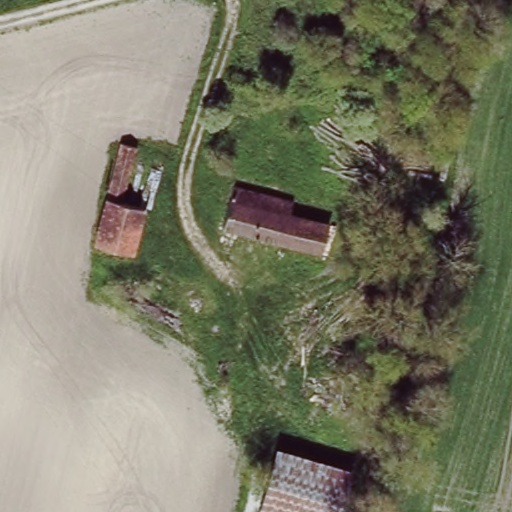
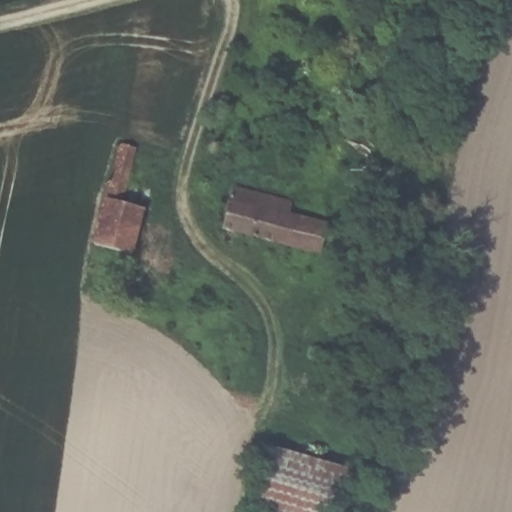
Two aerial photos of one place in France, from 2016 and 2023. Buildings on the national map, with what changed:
unchanged [(118,140),(137,145),(123,200),(104,194),(118,140)]
unchanged [(294,203),(291,216),(329,226),(321,257),(226,233),(235,190),(294,203)]
unchanged [(123,200),(146,206),(128,277),(89,267),(104,194),(123,200)]
unchanged [(353,471),(343,512),(260,512),(278,450),(353,471)]

